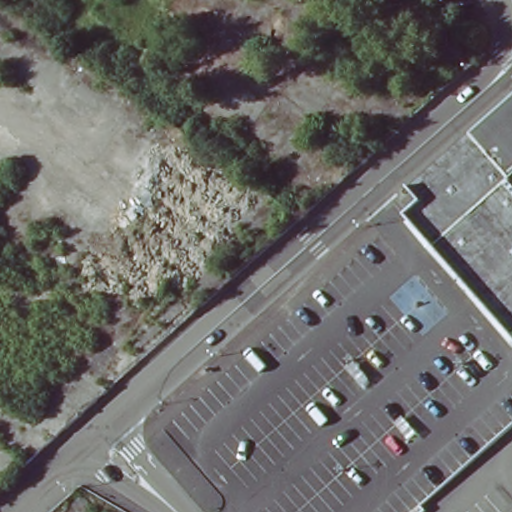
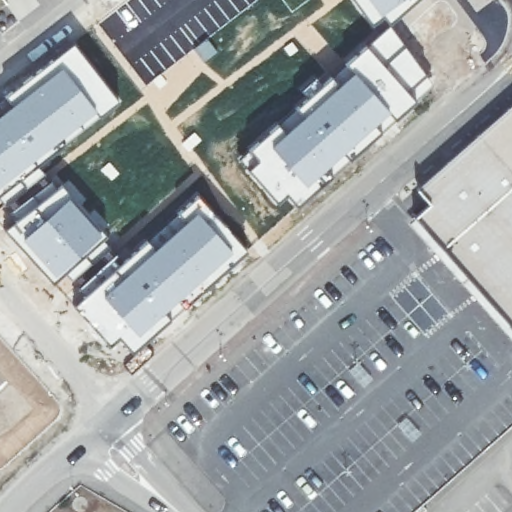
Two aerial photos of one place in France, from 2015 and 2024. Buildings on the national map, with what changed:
new [(384,14),(371,24),(353,0),(410,0),(388,18),(384,14)]
new [(294,37),(292,34),(307,21),(328,45),(314,57),(302,46),(289,56),(282,47),(294,37)]
new [(388,24),(432,83),(393,117),(344,63),(388,24)]
new [(73,41),(118,99),(34,161),(44,173),(27,186),(21,180),(0,195),(0,97),(73,41)]
new [(285,129),(278,121),(344,63),(393,117),(359,146),(357,144),(323,172),(318,177),(307,187),(270,145),(285,129)]
new [(278,121),(285,129),(270,145),(307,187),(318,177),(320,180),(294,205),(285,196),(277,203),(238,158),(278,121)]
unchanged [(459,231),(444,216),(486,180),(467,159),(508,124),(512,121),(512,303),(453,236),(459,231)]
unchanged [(433,203),(425,195),(467,159),(486,180),(444,216),(459,231),(453,236),(512,303),(512,328),(418,216),(433,203)]
new [(13,219),(7,212),(51,177),(57,185),(61,181),(107,235),(102,239),(105,242),(87,254),(92,260),(72,278),(65,271),(52,282),(2,227),(13,219)]
new [(85,292),(78,285),(113,254),(119,261),(147,238),(153,245),(174,225),(171,222),(192,200),(236,251),(166,311),(170,315),(131,350),(118,337),(108,345),(72,305),(85,292)]

